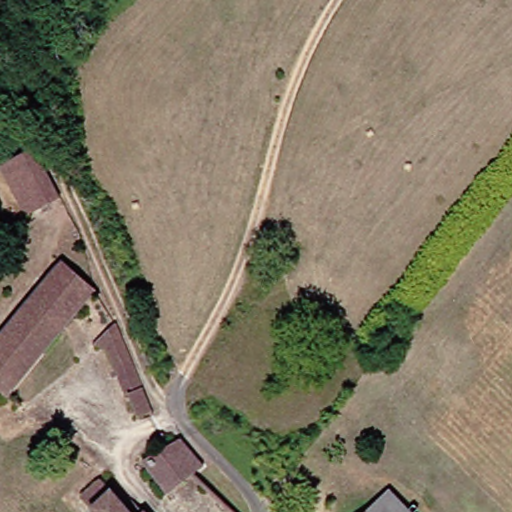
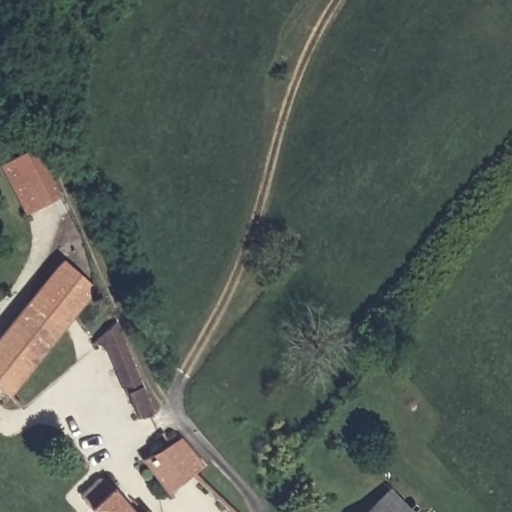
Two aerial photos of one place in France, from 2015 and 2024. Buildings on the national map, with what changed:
unchanged [(40,156),(62,201),(45,210),(38,196),(25,202),(8,170),(40,156)]
unchanged [(93,284),(96,287),(75,315),(21,387),(0,371),(0,342),(65,255),(93,284)]
unchanged [(158,434),(140,440),(101,345),(121,335),(158,434)]
unchanged [(182,435),(209,472),(200,481),(177,498),(143,461),(167,441),(182,435)]
unchanged [(99,483),(116,501),(125,493),(143,512),(88,512),(79,503),(99,483)]
unchanged [(413,512),(374,512),(395,492),(413,512)]

